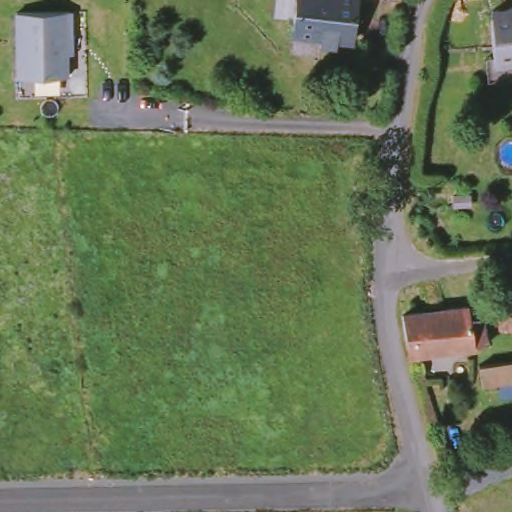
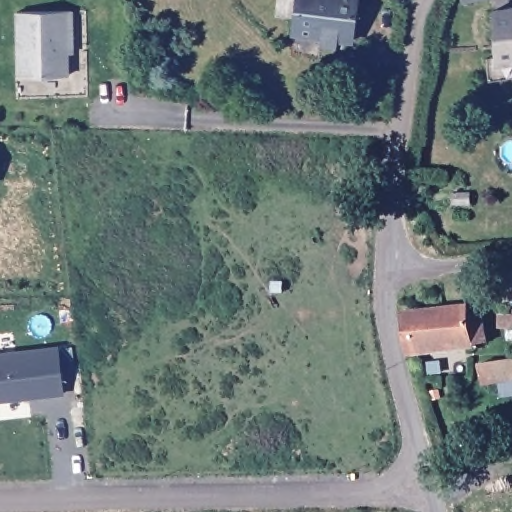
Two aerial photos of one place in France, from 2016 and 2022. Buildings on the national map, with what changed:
unchanged [(357,0),(350,43),(292,34),(296,0),(357,0)]
unchanged [(495,11),(512,9),(512,63),(498,65),(495,11)]
unchanged [(67,54),(68,77),(19,77),(18,10),(72,10),(72,34),(72,54),(67,54)]
new [(505,270),(512,270),(512,301),(506,302),(505,270)]
unchanged [(404,317),(445,310),(467,306),(470,317),(480,315),(487,340),(410,356),(404,317)]
new [(57,348),(62,394),(0,401),(0,354),(57,348)]
unchanged [(480,367),(512,363),(512,382),(484,385),(480,367)]

